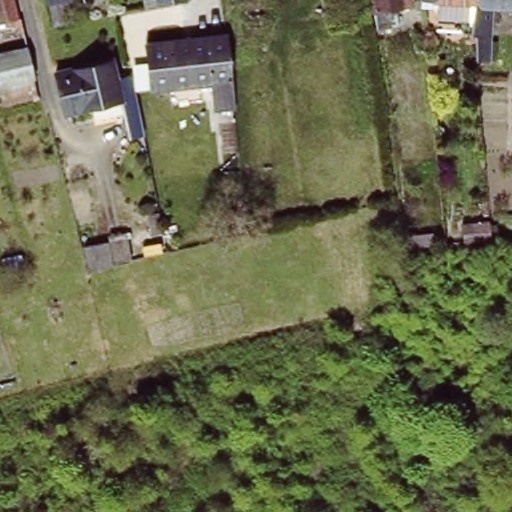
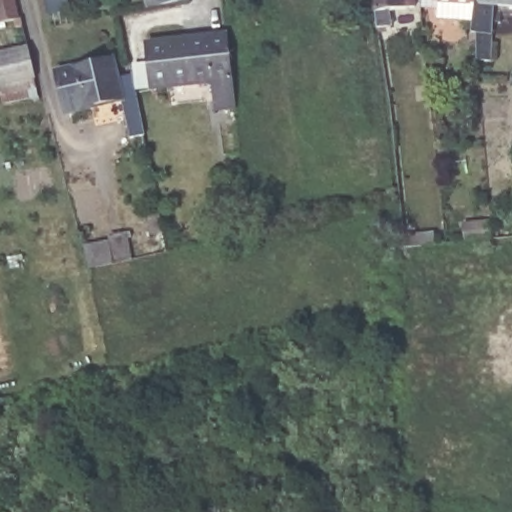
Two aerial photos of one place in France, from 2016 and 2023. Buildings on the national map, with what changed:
unchanged [(2,22),(0,14),(0,0),(20,0),(24,17),(2,22)]
unchanged [(52,24),(46,0),(77,0),(81,19),(52,24)]
unchanged [(147,0),(168,0),(148,4),(147,0)]
unchanged [(392,25),(377,27),(373,0),(400,0),(401,6),(389,8),(390,15),(398,15),(399,25),(392,25)]
unchanged [(425,6),(425,0),(479,0),(476,22),(440,20),(440,7),(425,6)]
unchanged [(479,0),(512,0),(512,3),(505,2),(503,20),(493,20),(495,60),(480,60),(479,40),(474,40),(474,32),(476,22),(479,0)]
unchanged [(232,100),(214,101),(211,76),(148,84),(143,37),(223,27),(232,100)]
unchanged [(123,102),(67,115),(57,75),(114,62),(123,102)]
unchanged [(37,96),(4,105),(0,90),(0,74),(30,66),(37,96)]
unchanged [(112,239),(110,233),(124,230),(130,251),(90,260),(85,244),(112,239)]
unchanged [(404,249),(403,238),(417,237),(417,249),(404,249)]

